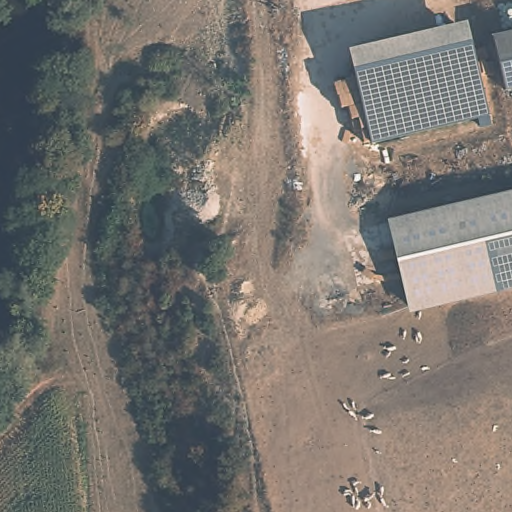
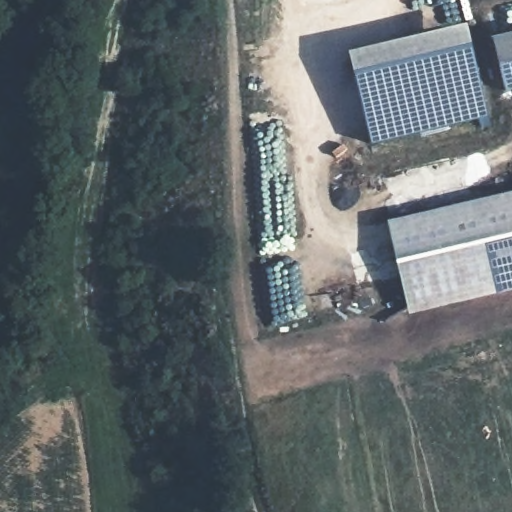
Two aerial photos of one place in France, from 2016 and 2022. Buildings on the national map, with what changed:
unchanged [(488,116),(373,143),(349,48),(467,21),(488,116)]
unchanged [(496,36),(512,33),(512,88),(509,89),(496,36)]
unchanged [(387,219),(512,190),(512,288),(409,312),(387,219)]

